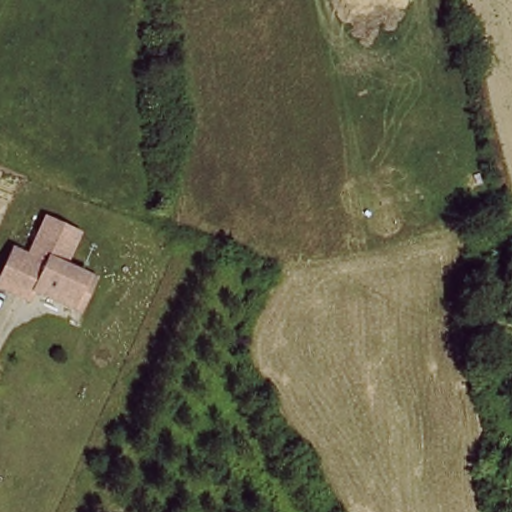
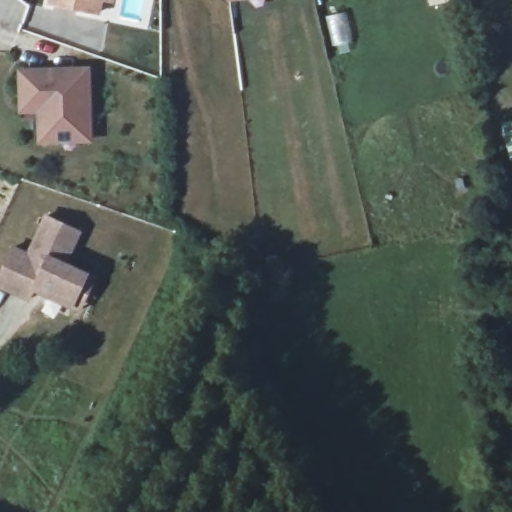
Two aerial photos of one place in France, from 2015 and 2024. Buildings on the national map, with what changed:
new [(107,13),(58,5),(59,0),(109,0),(107,13)]
new [(89,72),(92,138),(42,140),(42,102),(24,103),(23,74),(89,72)]
unchanged [(81,315),(73,312),(35,294),(30,304),(15,297),(30,261),(46,268),(64,229),(80,237),(65,269),(88,279),(96,283),(81,315)]

